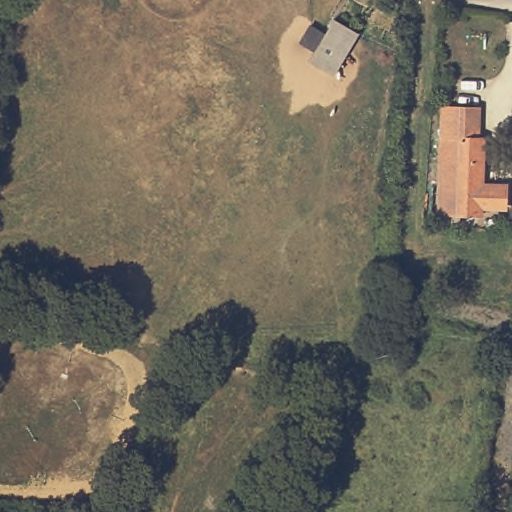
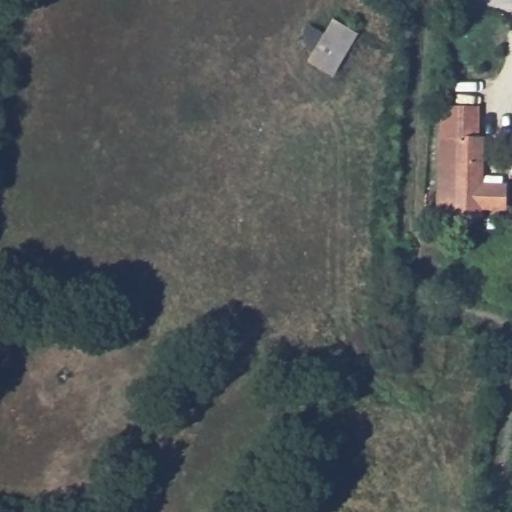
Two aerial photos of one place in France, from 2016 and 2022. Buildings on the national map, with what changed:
unchanged [(333,19),(355,34),(330,73),(308,59),(333,19)]
unchanged [(481,180),(492,180),(506,181),(506,201),(482,200),(482,210),(440,209),(441,133),(444,133),(445,104),(477,104),(477,133),(482,133),(481,180)]

